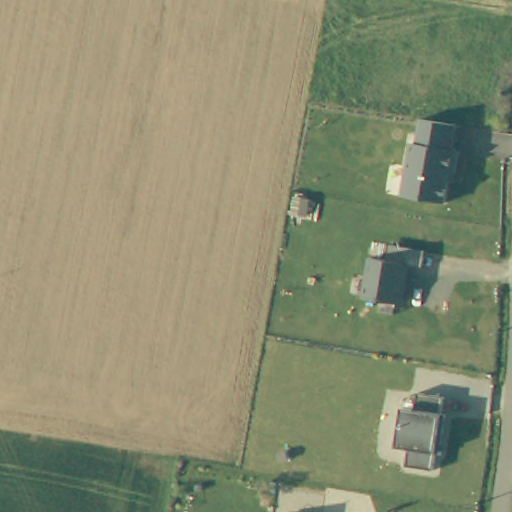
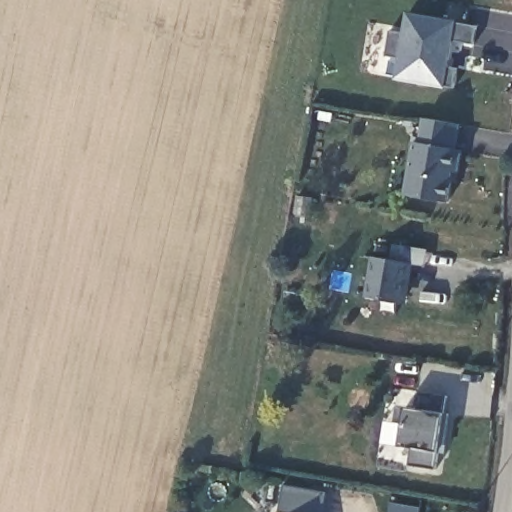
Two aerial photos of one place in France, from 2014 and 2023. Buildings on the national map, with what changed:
new [(473,44),(454,41),(450,67),(456,68),(452,90),(394,81),(398,59),(384,57),(389,31),(402,34),(406,12),(477,25),(473,44)]
unchanged [(405,195),(416,142),(419,143),(424,119),(463,128),(458,151),(464,152),(458,186),(451,183),(448,203),(405,195)]
unchanged [(365,297),(371,258),(393,262),(395,245),(427,250),(424,270),(413,267),(405,306),(365,297)]
unchanged [(408,466),(411,449),(398,447),(405,409),(416,411),(420,395),(448,399),(444,419),(438,456),(435,471),(408,466)]
new [(280,512),(285,486),(324,494),(322,512),(280,512)]

